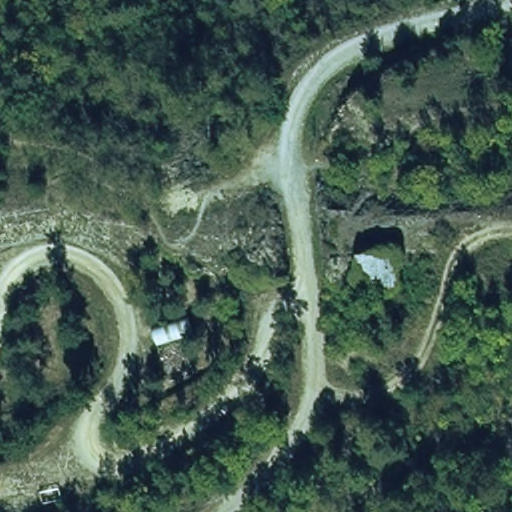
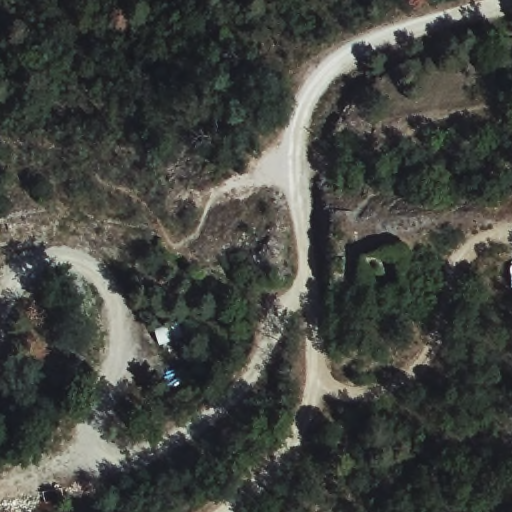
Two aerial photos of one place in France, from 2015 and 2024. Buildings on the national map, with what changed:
unchanged [(358,255),(395,249),(402,282),(365,290),(358,255)]
unchanged [(195,332),(157,341),(152,325),(193,316),(195,332)]

